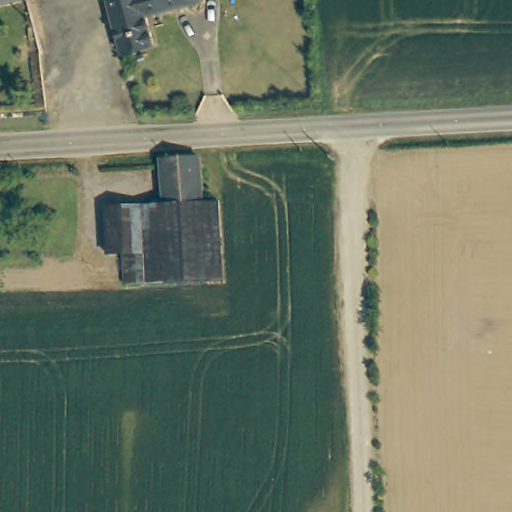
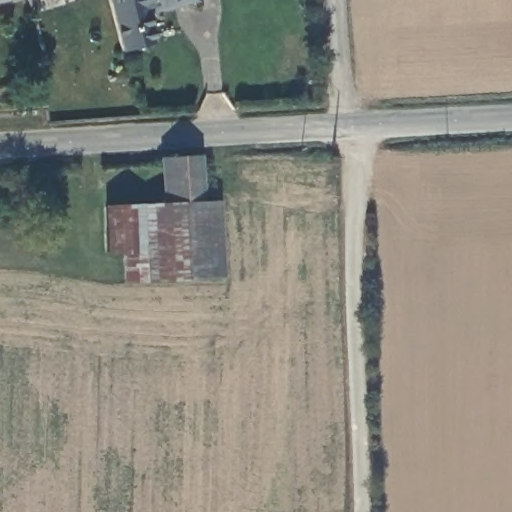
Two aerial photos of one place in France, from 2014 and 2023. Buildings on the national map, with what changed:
unchanged [(202,1),(160,12),(157,4),(140,8),(154,61),(123,69),(105,0),(202,0),(202,1)]
unchanged [(198,196),(160,198),(158,154),(195,153),(198,196)]
unchanged [(120,247),(104,248),(101,202),(160,198),(198,196),(216,196),(221,276),(147,279),(123,282),(122,274),(120,247)]

